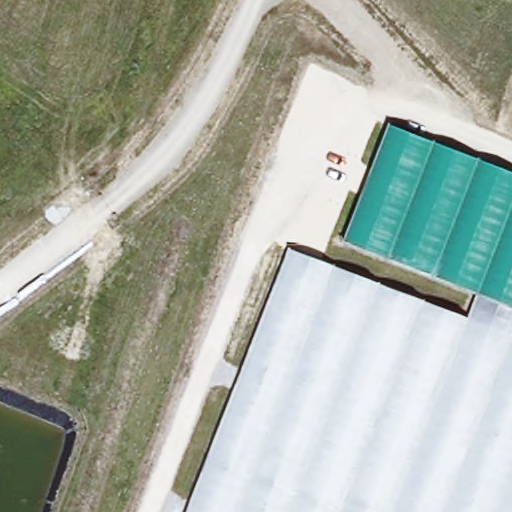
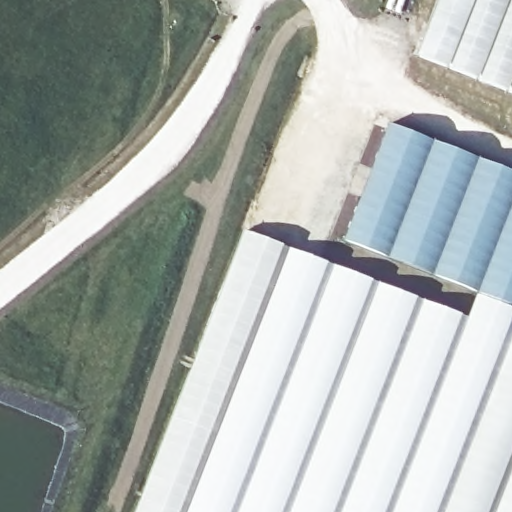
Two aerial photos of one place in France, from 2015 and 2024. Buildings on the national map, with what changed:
new [(435,0),(512,0),(512,92),(414,53),(435,0)]
unchanged [(347,240),(394,122),(512,170),(512,306),(481,294),(347,240)]
new [(291,247),(189,512),(135,512),(244,229),(291,247)]
unchanged [(291,247),(470,320),(512,336),(512,512),(189,512),(291,247)]
unchanged [(481,294),(512,306),(512,336),(470,320),(481,294)]

